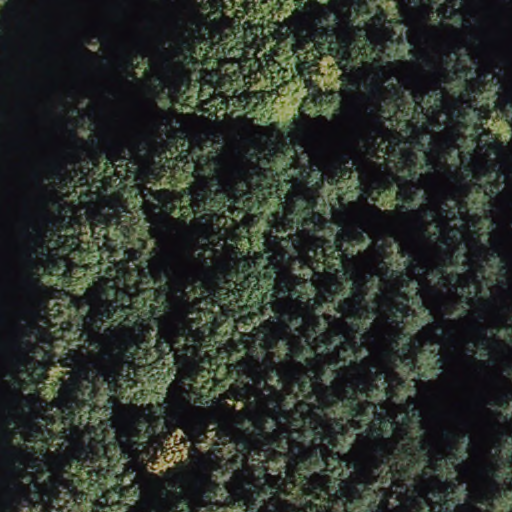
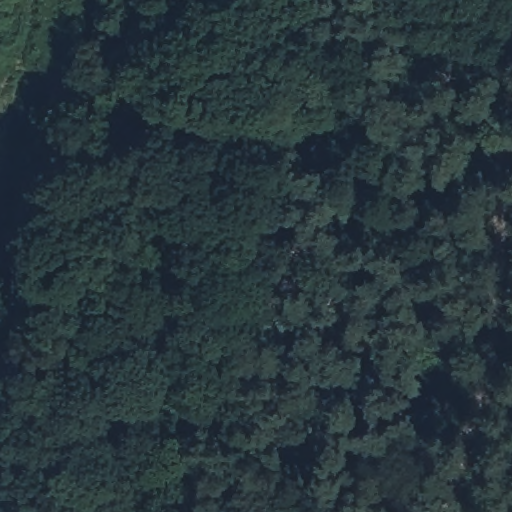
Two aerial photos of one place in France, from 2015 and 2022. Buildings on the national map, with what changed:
unchanged [(103,463),(78,454),(90,426),(113,431),(103,463)]

